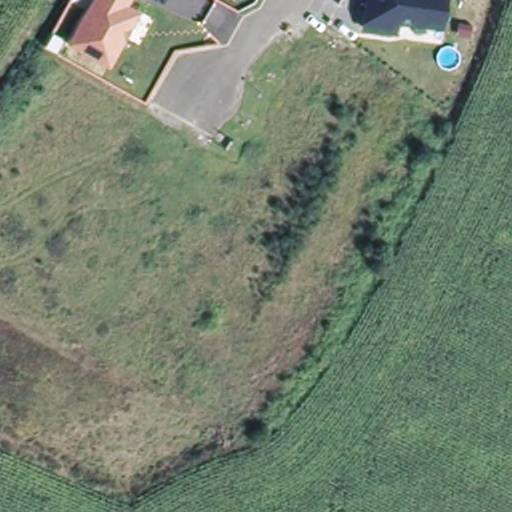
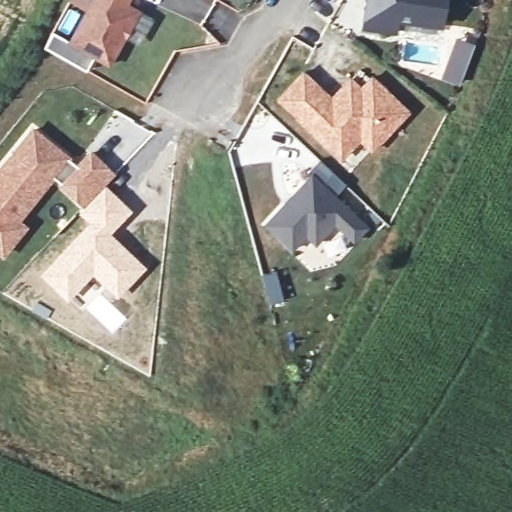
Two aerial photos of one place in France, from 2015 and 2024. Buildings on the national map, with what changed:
new [(97,0),(90,14),(69,3),(70,0),(97,0)]
unchanged [(97,0),(133,0),(128,9),(141,16),(112,69),(72,46),(90,14),(97,0)]
unchanged [(400,19),(398,32),(367,28),(370,0),(448,0),(445,26),(400,19)]
new [(458,39),(474,45),(462,75),(460,82),(443,76),(446,69),(458,39)]
new [(303,69),(331,95),(350,76),(361,85),(372,74),(411,111),(371,151),(360,141),(339,160),(275,98),(303,69)]
new [(70,159),(77,165),(91,149),(114,173),(80,205),(54,178),(21,222),(27,227),(2,258),(0,255),(0,166),(33,125),(70,159)]
new [(286,201),(290,204),(296,197),(292,193),(312,172),(309,169),(318,158),(345,183),(335,194),(366,224),(353,238),(335,221),(315,242),(306,232),(292,247),(265,222),(286,201)]
new [(133,210),(111,233),(146,267),(117,297),(94,274),(67,300),(40,274),(88,222),(79,213),(105,185),(133,210)]

